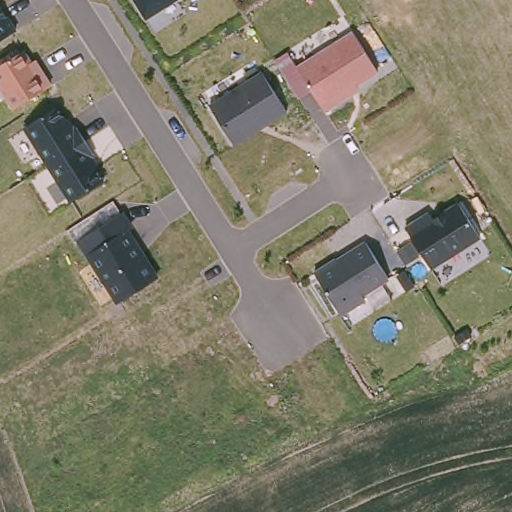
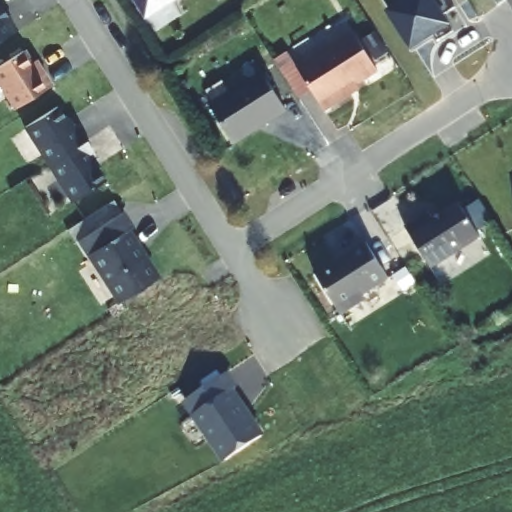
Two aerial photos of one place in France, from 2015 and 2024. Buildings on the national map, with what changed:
unchanged [(134,0),(179,0),(146,21),(134,0)]
new [(402,0),(450,0),(456,7),(444,16),(451,26),(456,32),(439,42),(434,36),(412,50),(386,11),(402,0)]
unchanged [(6,16),(16,31),(0,41),(0,14),(3,18),(6,16)]
unchanged [(289,52),(296,64),(353,31),(378,72),(357,85),(361,91),(325,112),(313,90),(299,99),(274,61),(289,52)]
unchanged [(38,72),(41,71),(51,86),(14,109),(0,87),(0,66),(23,52),(38,72)]
unchanged [(288,114),(235,146),(208,104),(261,71),(288,114)]
unchanged [(71,129),(75,127),(94,156),(89,159),(104,182),(71,202),(25,129),(57,107),(71,129)]
unchanged [(425,216),(429,222),(454,206),(476,241),(427,272),(401,230),(425,216)]
unchanged [(134,227),(131,229),(159,277),(116,302),(87,257),(76,240),(124,211),(134,227)]
unchanged [(384,281),(358,297),(361,301),(356,303),(336,317),(310,275),(332,261),(334,265),(345,257),(344,255),(361,244),(384,281)]
new [(239,383),(234,387),(266,433),(223,462),(183,402),(230,370),(239,383)]

